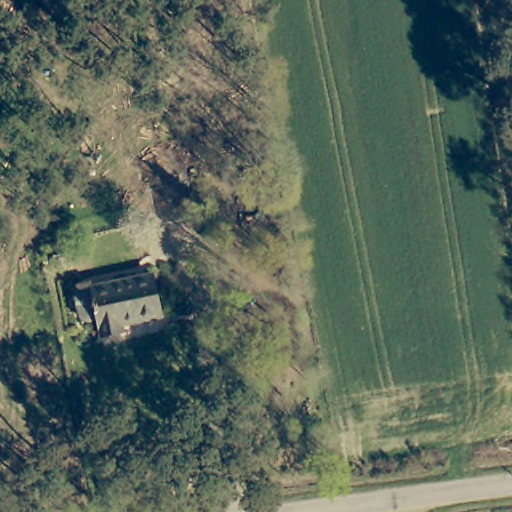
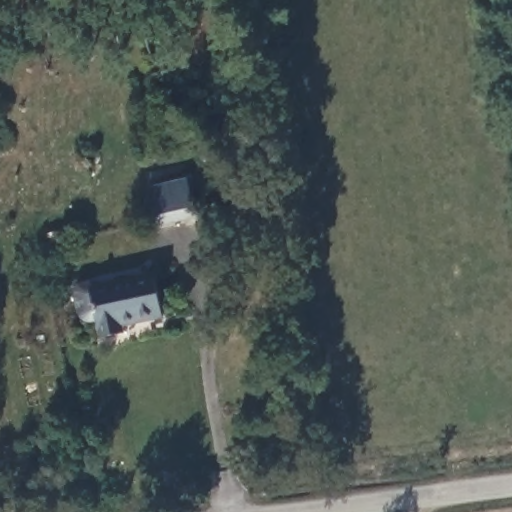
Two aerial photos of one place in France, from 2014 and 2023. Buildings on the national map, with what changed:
new [(198,220),(156,228),(146,188),(187,178),(198,220)]
unchanged [(121,325),(123,333),(100,338),(96,322),(80,326),(71,288),(88,284),(89,288),(151,274),(161,316),(121,325)]

